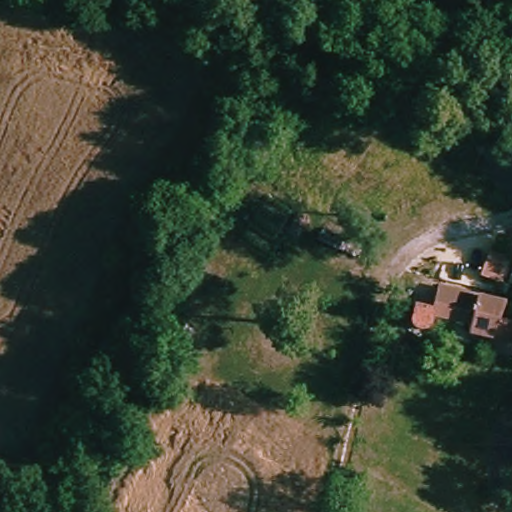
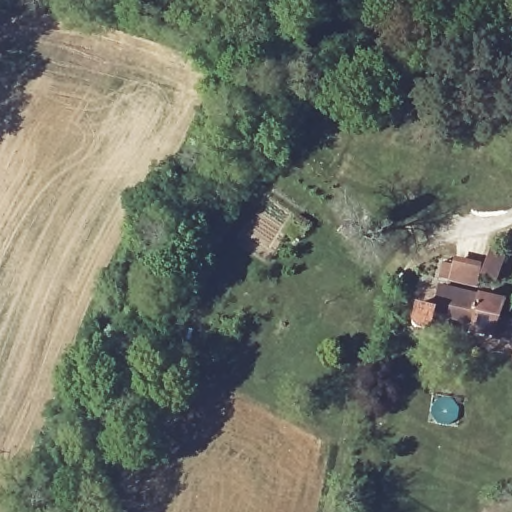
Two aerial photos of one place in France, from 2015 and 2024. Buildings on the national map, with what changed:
unchanged [(464,321),(443,318),(443,308),(428,306),(430,288),(496,295),(492,313),(510,317),(508,335),(463,330),(464,321)]
unchanged [(425,326),(417,333),(410,331),(405,326),(407,308),(426,312),(425,326)]

